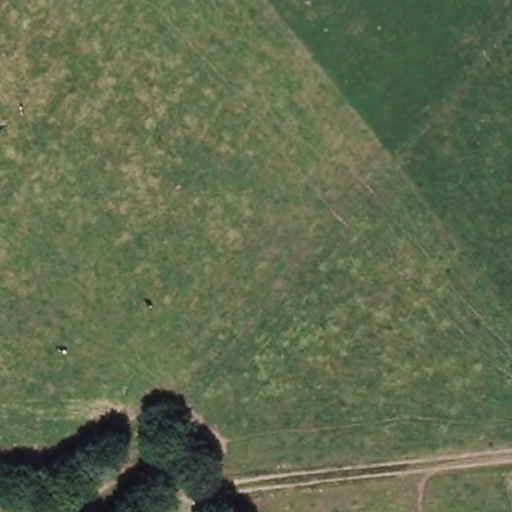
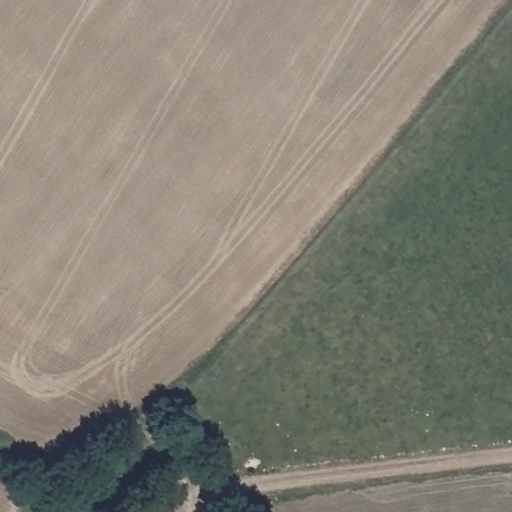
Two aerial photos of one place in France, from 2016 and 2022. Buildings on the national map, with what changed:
[]

